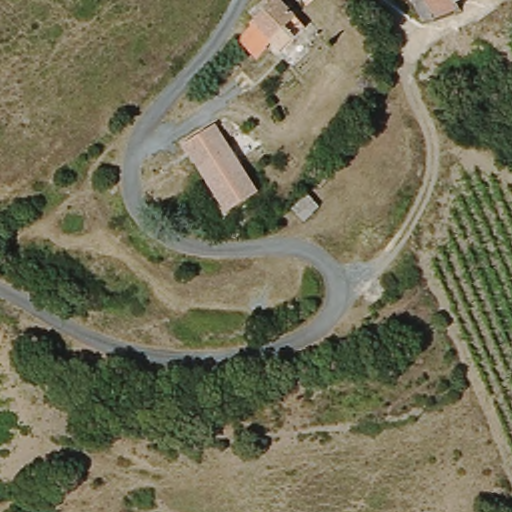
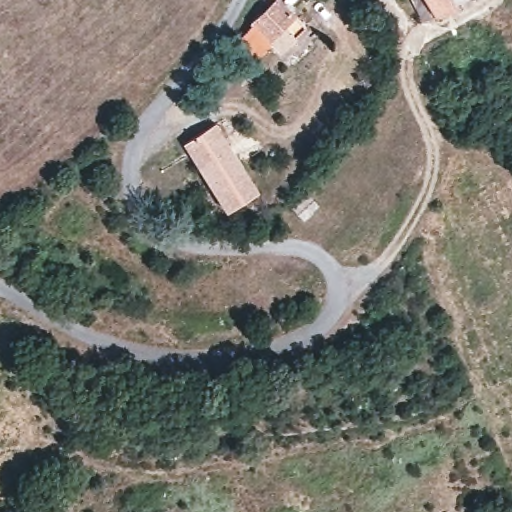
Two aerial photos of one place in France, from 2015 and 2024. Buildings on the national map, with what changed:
unchanged [(251,24),(249,21),(271,0),(280,0),(304,28),(277,53),(268,47),(255,61),(236,39),(251,24)]
unchanged [(303,2),(300,0),(305,0),(303,2)]
unchanged [(471,1),(434,18),(425,0),(471,0),(471,1)]
unchanged [(256,192),(228,211),(184,142),(213,124),(256,192)]
unchanged [(308,219),(289,211),(306,194),(317,206),(308,219)]

